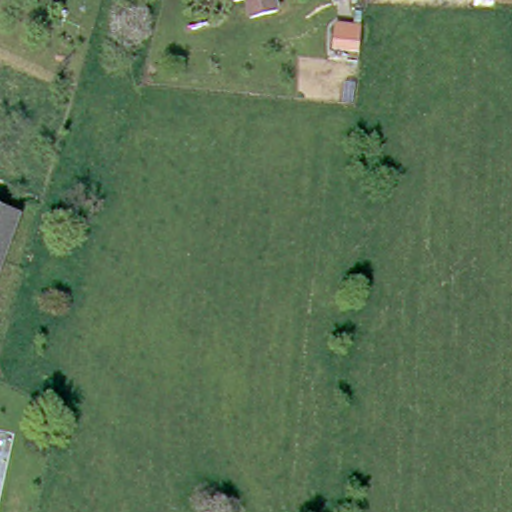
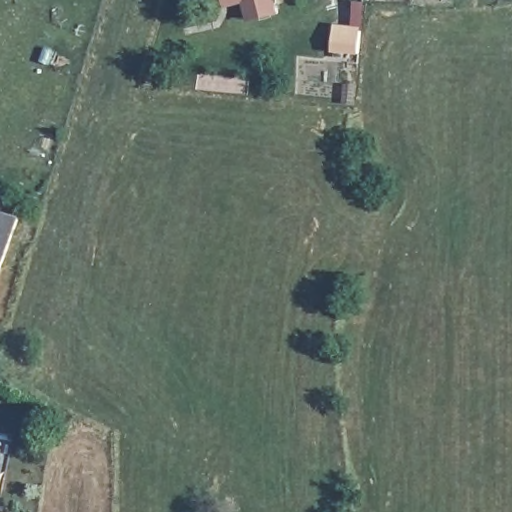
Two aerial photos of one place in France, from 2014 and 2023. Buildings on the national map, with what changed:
unchanged [(276,5),(248,12),(245,0),(275,0),(276,5)]
unchanged [(340,59),(343,30),(359,31),(356,61),(340,59)]
unchanged [(0,263),(0,206),(18,212),(0,263)]

